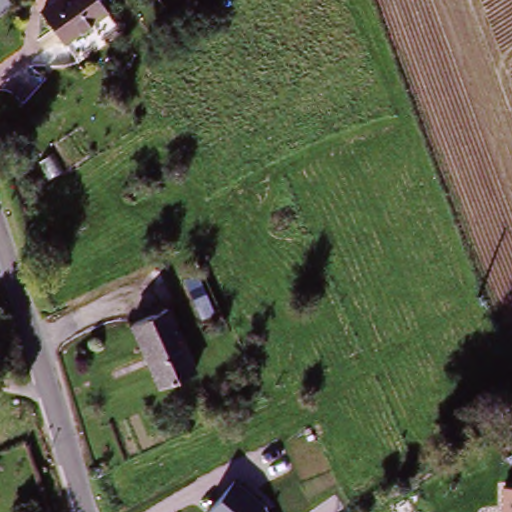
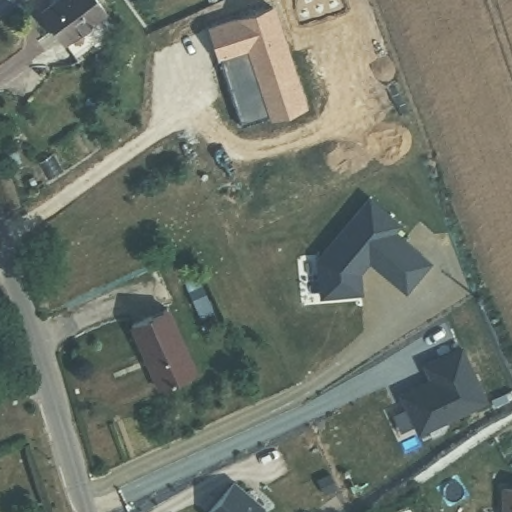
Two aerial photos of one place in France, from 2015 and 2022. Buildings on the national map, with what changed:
unchanged [(99,13),(59,43),(36,12),(53,0),(89,0),(99,13)]
demolished [(343,2),(356,32),(324,46),(278,67),(261,75),(243,38),(325,0),(342,0),(343,2)]
new [(304,109),(241,129),(210,30),(273,10),(304,109)]
demolished [(338,88),(324,106),(303,107),(289,90),(335,67),(338,88)]
new [(368,201),(398,226),(391,234),(428,264),(404,293),(364,259),(357,267),(359,294),(320,297),(317,261),(368,201)]
unchanged [(131,326),(165,311),(193,373),(159,389),(131,326)]
new [(460,349),(485,403),(418,435),(402,402),(400,396),(430,382),(433,387),(423,366),(460,349)]
new [(336,488),(323,494),(317,481),(330,475),(336,488)]
unchanged [(267,512),(209,512),(234,481),(265,507),(267,512)]
unchanged [(512,491),(512,512),(502,512),(502,492),(512,491)]

